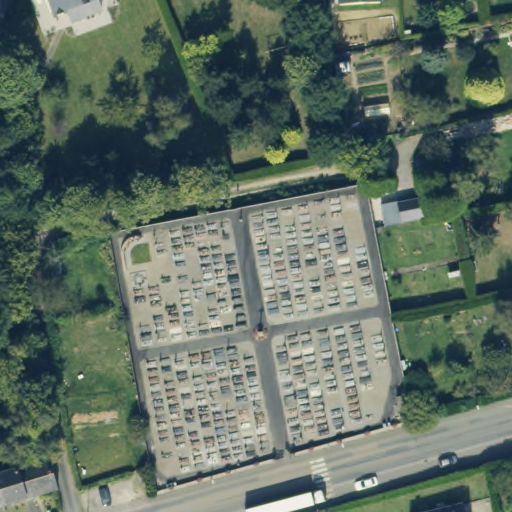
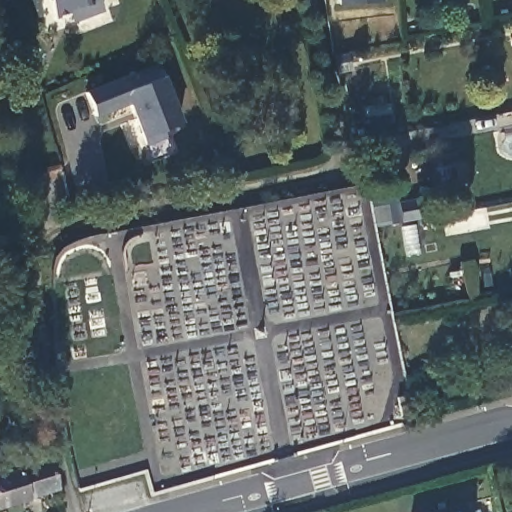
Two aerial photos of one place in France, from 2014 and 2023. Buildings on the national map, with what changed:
unchanged [(103,8),(80,19),(76,9),(55,16),(48,0),(100,0),(103,8)]
unchanged [(383,3),(343,5),(343,0),(383,0),(383,3)]
new [(157,67),(165,87),(171,85),(178,103),(172,105),(180,125),(163,132),(166,139),(146,147),(129,105),(96,118),(86,95),(157,67)]
unchanged [(385,224),(380,199),(419,192),(423,216),(385,224)]
unchanged [(46,457),(53,486),(0,503),(0,472),(46,457)]
unchanged [(466,512),(423,512),(464,502),(466,512)]

